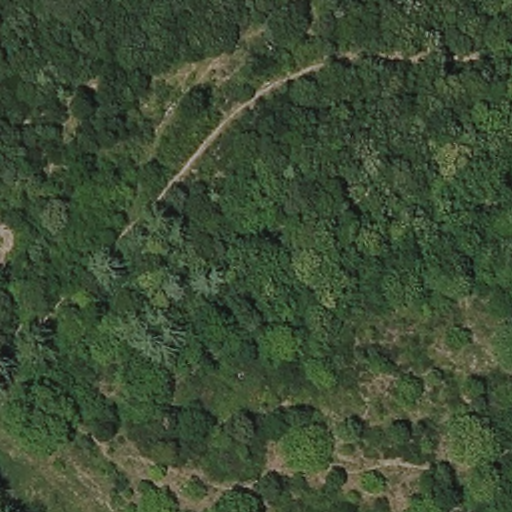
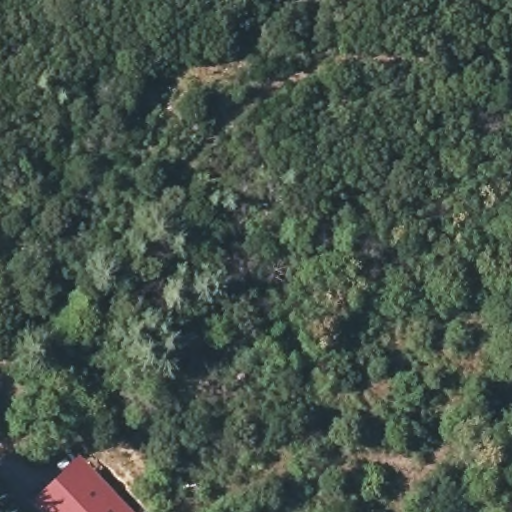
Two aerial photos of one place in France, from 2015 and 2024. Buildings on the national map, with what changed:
new [(29,502),(79,454),(134,512),(38,512),(29,502)]

